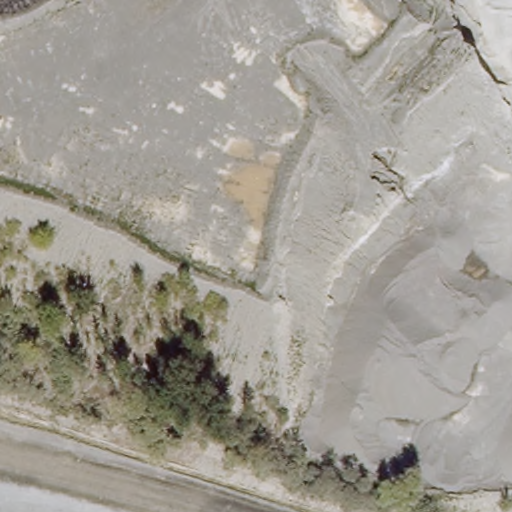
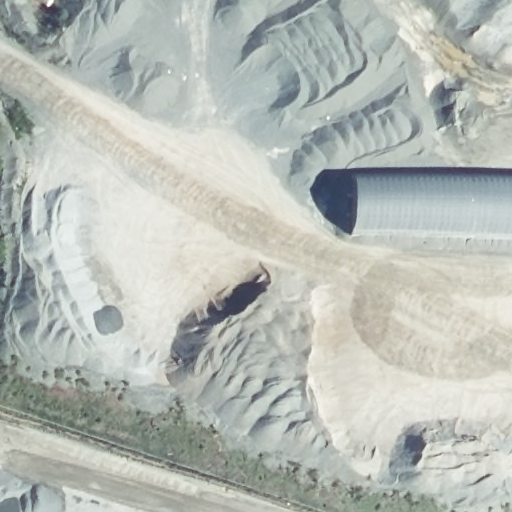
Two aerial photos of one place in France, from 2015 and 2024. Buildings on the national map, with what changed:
new [(359,165),(391,167),(512,173),(512,236),(429,231),(354,230),(359,165)]

